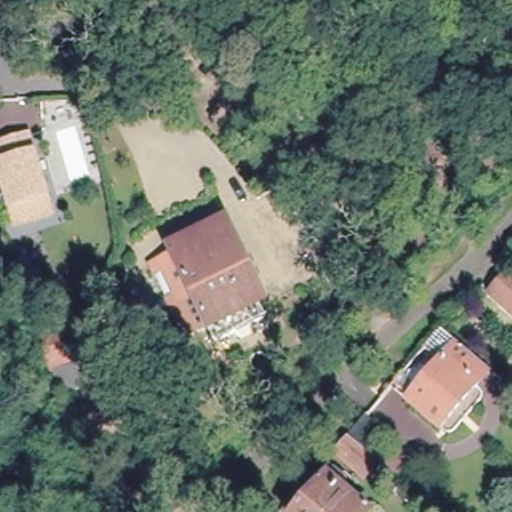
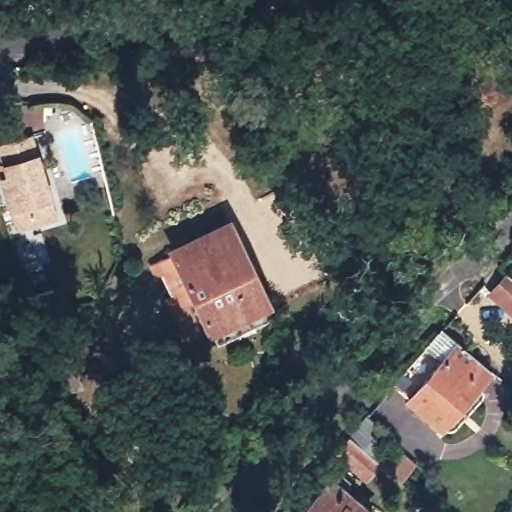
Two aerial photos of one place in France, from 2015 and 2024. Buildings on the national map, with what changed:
unchanged [(14,222),(11,212),(0,173),(0,160),(2,159),(0,150),(0,139),(28,132),(48,202),(50,211),(14,222)]
unchanged [(146,265),(162,257),(158,250),(240,212),(249,233),(242,237),(267,290),(193,325),(183,304),(168,313),(146,265)]
unchanged [(510,274),(512,275),(512,308),(494,292),(510,274)]
unchanged [(62,341),(47,345),(44,331),(58,327),(62,341)]
unchanged [(443,329),(492,371),(442,428),(410,399),(433,372),(418,359),(443,329)]
unchanged [(350,431),(380,457),(366,474),(336,447),(350,431)]
unchanged [(335,481),(336,479),(375,512),(293,512),(290,509),(324,471),(335,481)]

